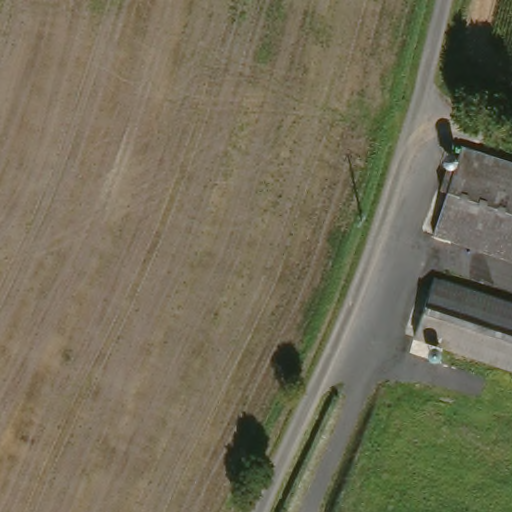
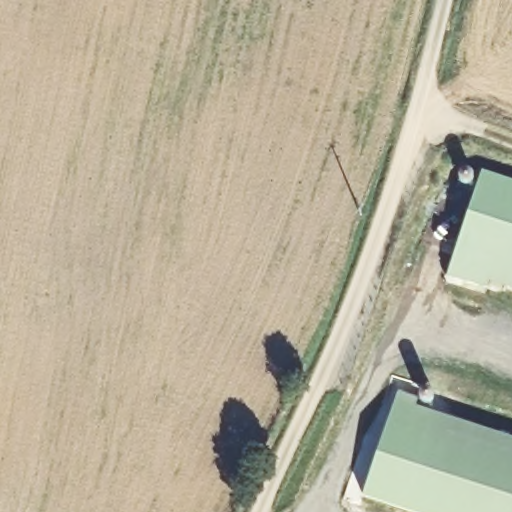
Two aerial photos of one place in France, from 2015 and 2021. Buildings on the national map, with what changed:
demolished [(441,184),(443,174),(452,176),(458,154),(512,170),(512,264),(432,240),(448,187),(441,184)]
new [(512,180),(512,287),(490,280),(486,289),(447,276),(482,170),(512,180)]
demolished [(512,306),(512,371),(412,341),(430,282),(512,306)]
new [(418,397),(416,403),(512,435),(512,512),(406,512),(362,497),(397,390),(418,397)]

